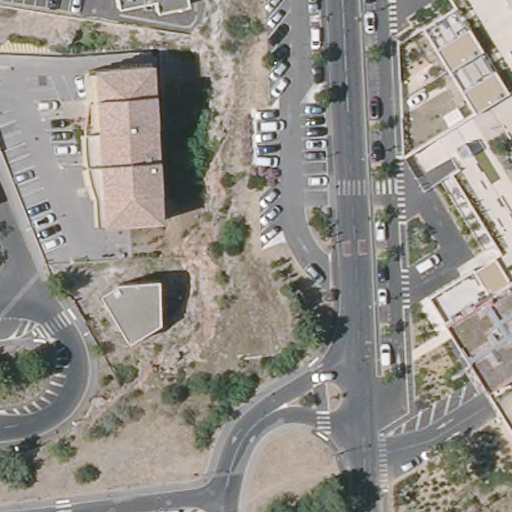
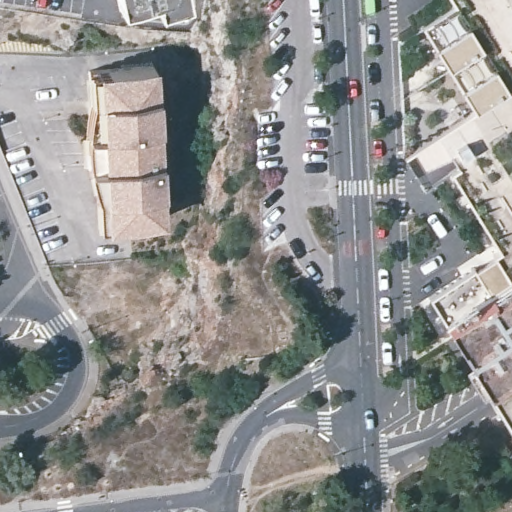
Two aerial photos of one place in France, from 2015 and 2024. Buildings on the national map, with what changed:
unchanged [(148,11),(147,2),(110,7),(109,0),(180,0),(181,6),(148,11)]
unchanged [(490,397),(477,402),(433,323),(439,320),(426,298),(498,256),(452,171),(425,193),(404,158),(473,119),(426,28),(457,10),(451,0),(512,0),(512,438),(490,397)]
unchanged [(90,165),(86,70),(151,68),(158,223),(100,225),(97,164),(90,165)]
demolished [(117,285),(157,285),(160,330),(131,348),(98,298),(117,285)]

